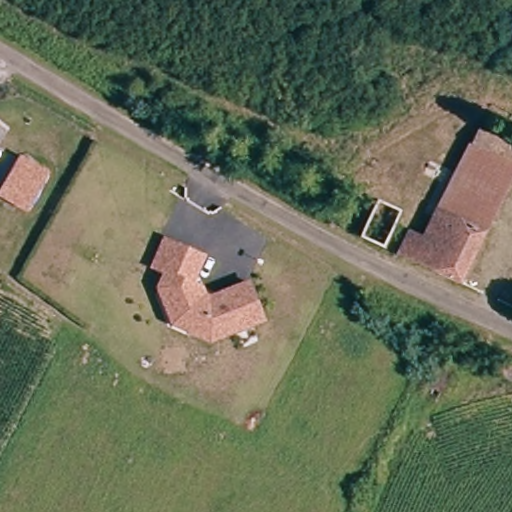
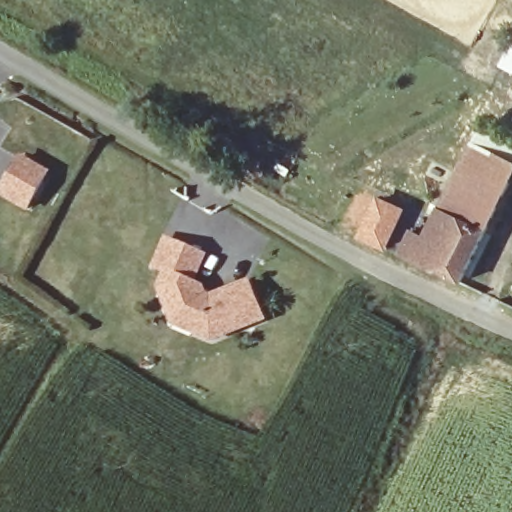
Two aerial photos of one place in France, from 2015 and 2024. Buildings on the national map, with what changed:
unchanged [(419,235),(469,139),(512,159),(512,166),(457,276),(398,250),(406,229),(419,235)]
unchanged [(57,170),(34,209),(1,191),(26,151),(57,170)]
demolished [(371,199),(373,195),(400,207),(383,243),(357,230),(371,199)]
unchanged [(213,250),(203,277),(211,281),(216,292),(256,275),(276,318),(221,340),(176,320),(163,285),(169,268),(156,262),(170,233),(213,250)]

